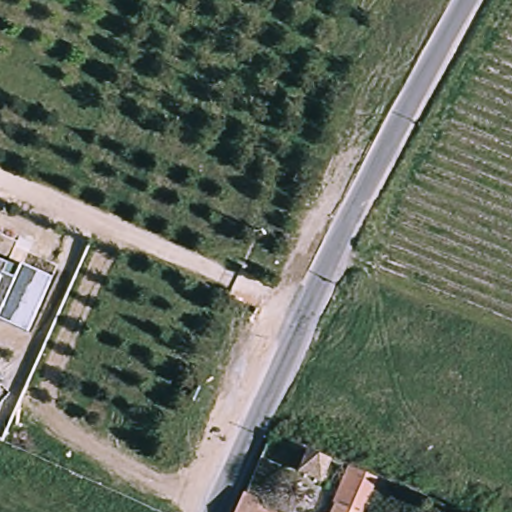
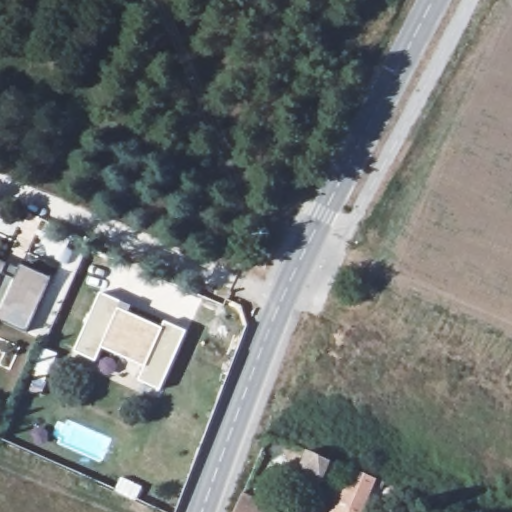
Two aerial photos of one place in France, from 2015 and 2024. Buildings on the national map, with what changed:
unchanged [(8,266),(6,272),(18,278),(24,264),(52,279),(28,330),(0,320),(2,312),(0,311),(0,262),(8,266)]
new [(107,295),(128,305),(126,311),(168,331),(171,325),(193,334),(166,393),(145,383),(151,370),(108,350),(102,364),(81,354),(107,295)]
unchanged [(291,472),(300,450),(327,461),(318,483),(291,472)]
unchanged [(350,467),(358,471),(361,472),(377,479),(363,512),(331,512),(336,501),(350,467)]
unchanged [(229,497),(261,512),(262,512),(223,512),(229,497)]

